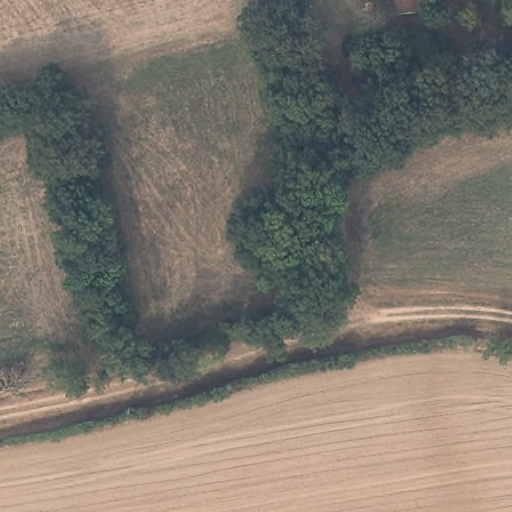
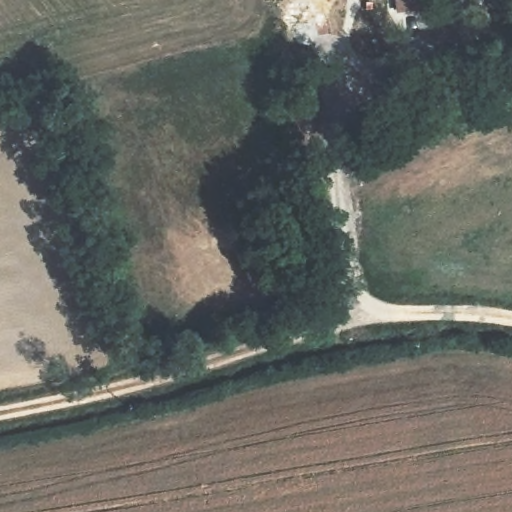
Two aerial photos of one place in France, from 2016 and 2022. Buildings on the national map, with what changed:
unchanged [(396,0),(428,0),(429,4),(397,7),(396,0)]

